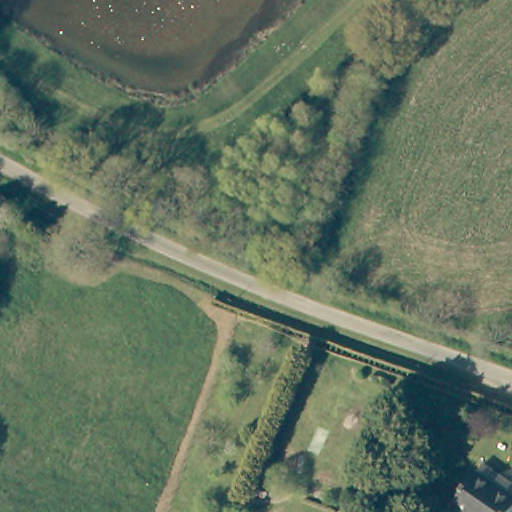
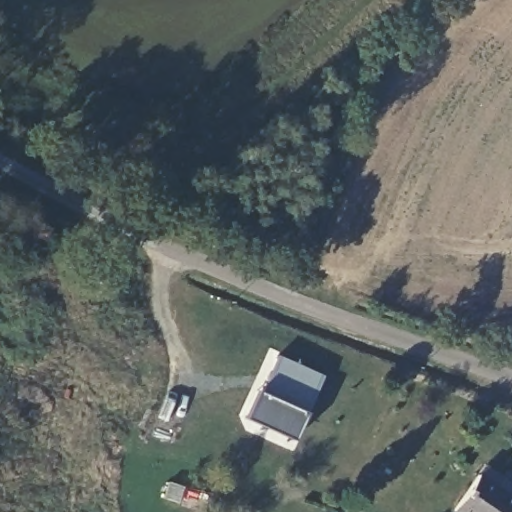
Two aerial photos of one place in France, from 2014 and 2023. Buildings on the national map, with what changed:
new [(257,391),(263,394),(277,355),(323,376),(306,415),(306,414),(293,441),(243,418),(257,391)]
unchanged [(466,512),(456,505),(480,472),(512,494),(512,512),(466,512)]

